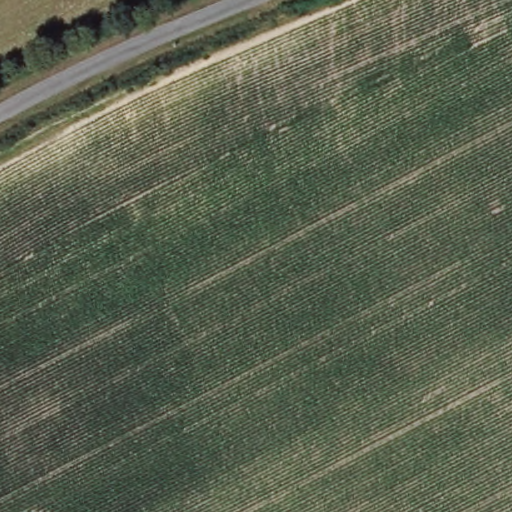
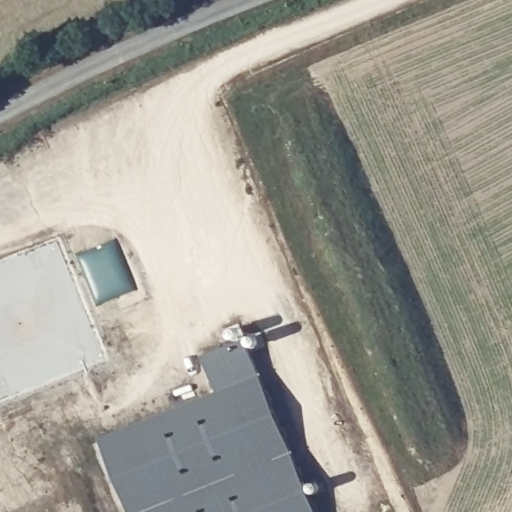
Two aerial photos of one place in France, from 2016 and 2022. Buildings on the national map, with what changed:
new [(99,439),(215,391),(203,358),(246,339),(313,512),(129,512),(99,439)]

